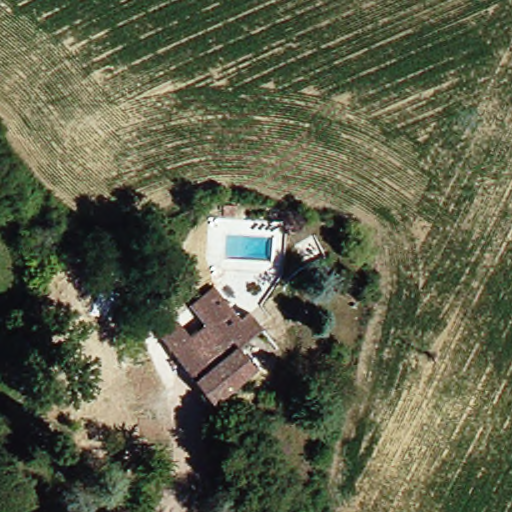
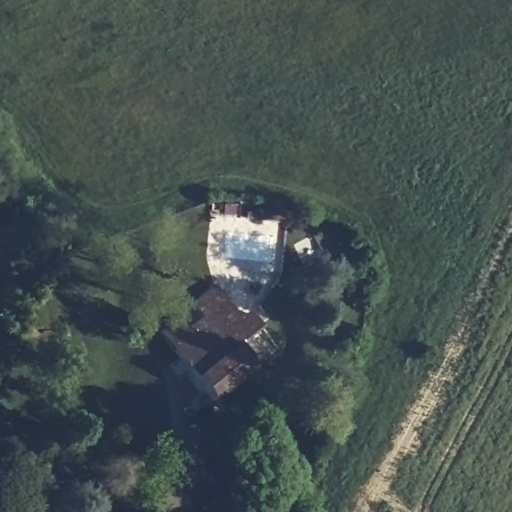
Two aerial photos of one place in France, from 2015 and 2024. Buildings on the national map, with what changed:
unchanged [(203,303),(226,285),(240,304),(249,297),(272,328),(250,344),(267,369),(225,398),(185,346),(176,335),(199,320),(206,330),(216,321),(203,303)]
unchanged [(258,509),(275,494),(289,512),(261,512),(258,509)]

